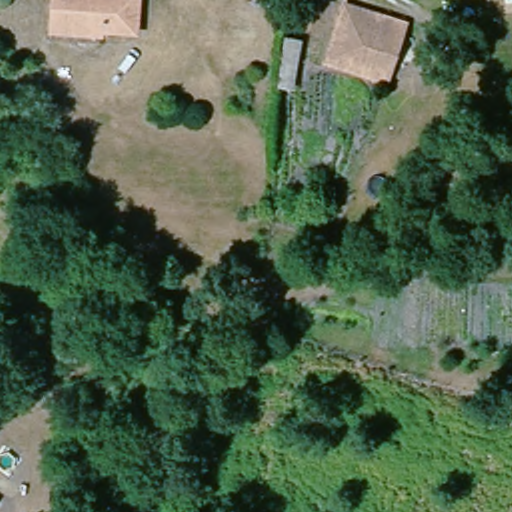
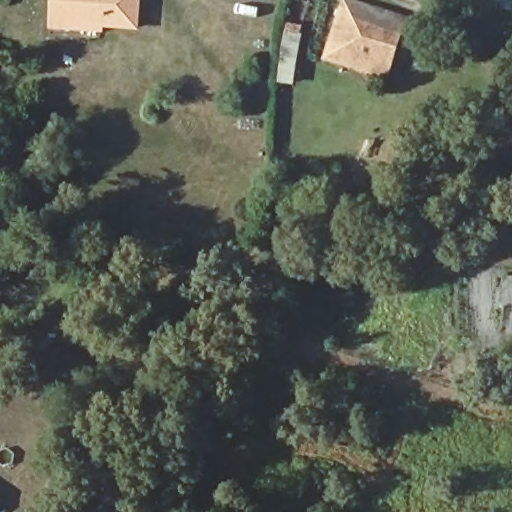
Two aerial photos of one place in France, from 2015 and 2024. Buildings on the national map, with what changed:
unchanged [(55,33),(55,0),(139,0),(139,30),(97,28),(97,34),(74,34),(55,33)]
unchanged [(394,75),(334,60),(347,5),(408,21),(394,75)]

